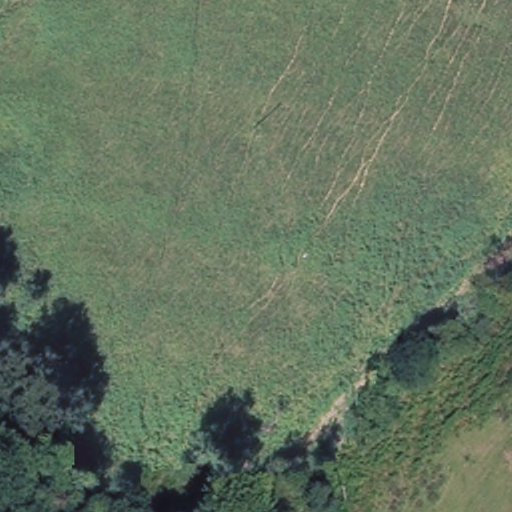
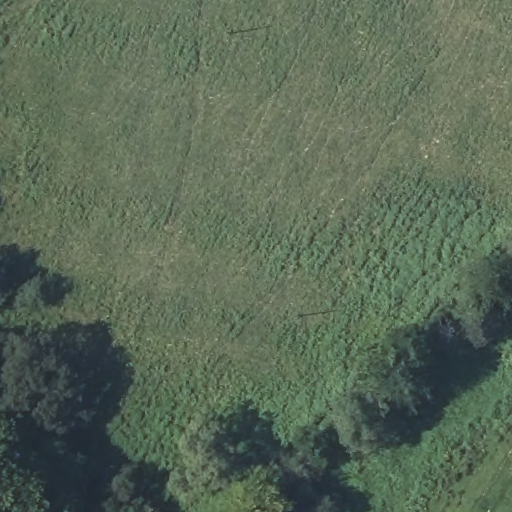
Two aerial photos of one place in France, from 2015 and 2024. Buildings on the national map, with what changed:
[]

